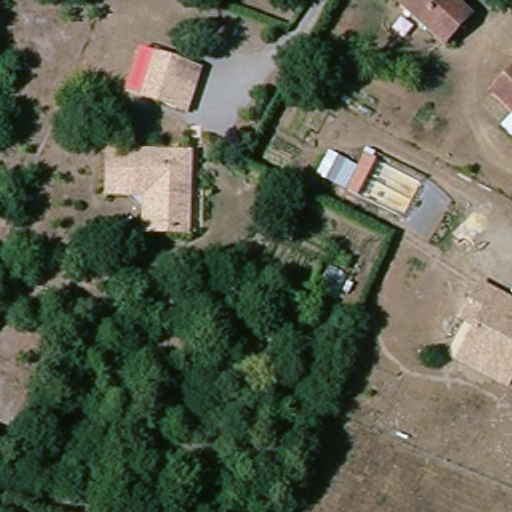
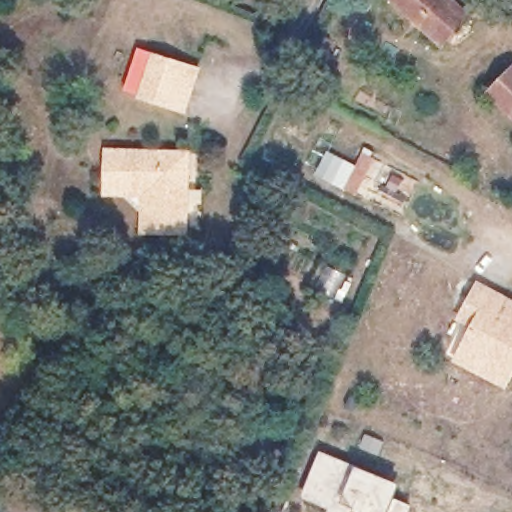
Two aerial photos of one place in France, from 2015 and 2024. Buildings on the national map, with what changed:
unchanged [(400,0),(452,0),(468,17),(441,41),(400,0)]
unchanged [(175,110),(150,104),(164,51),(183,58),(183,65),(192,67),(178,113),(175,110)]
unchanged [(512,65),(512,116),(487,93),(487,91),(512,65)]
unchanged [(190,164),(173,235),(138,225),(147,189),(107,177),(117,142),(190,164)]
new [(328,152),(355,166),(364,149),(377,155),(357,195),(316,175),(328,152)]
unchanged [(499,370),(460,347),(472,326),(458,318),(464,308),(477,285),(512,304),(512,347),(499,370)]
unchanged [(499,370),(512,347),(512,367),(501,386),(493,381),(453,359),(460,347),(499,370)]
unchanged [(1,425),(0,428),(0,425),(1,425)]
new [(399,482),(394,497),(411,505),(408,512),(327,512),(328,508),(299,496),(318,450),(399,482)]

